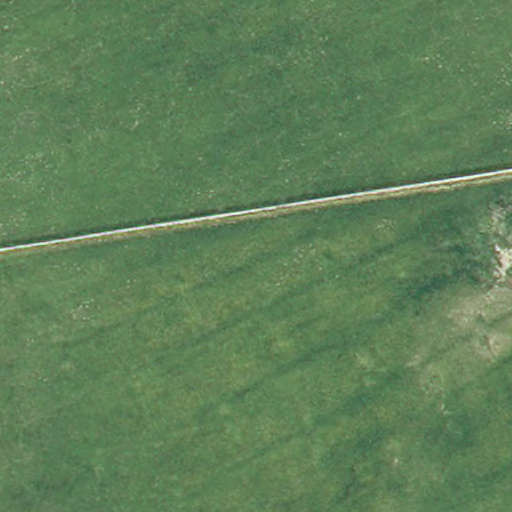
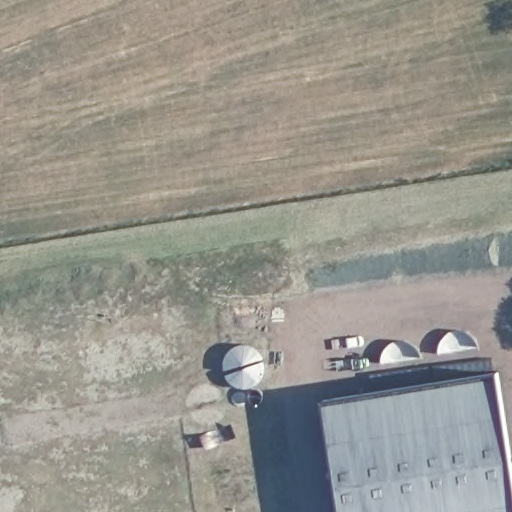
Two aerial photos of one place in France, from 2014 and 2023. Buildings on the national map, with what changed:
new [(512,473),(512,512),(341,512),(325,402),(497,377),(512,473)]

